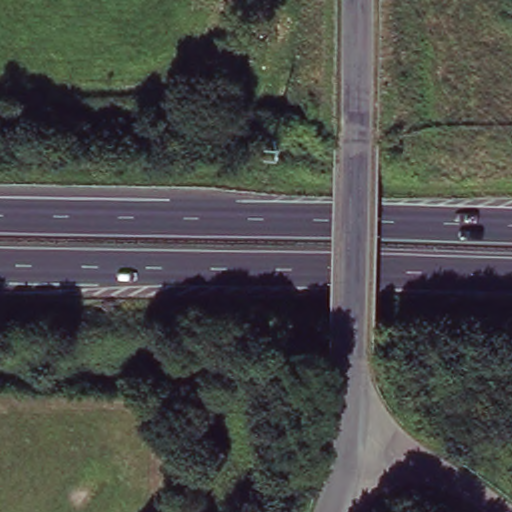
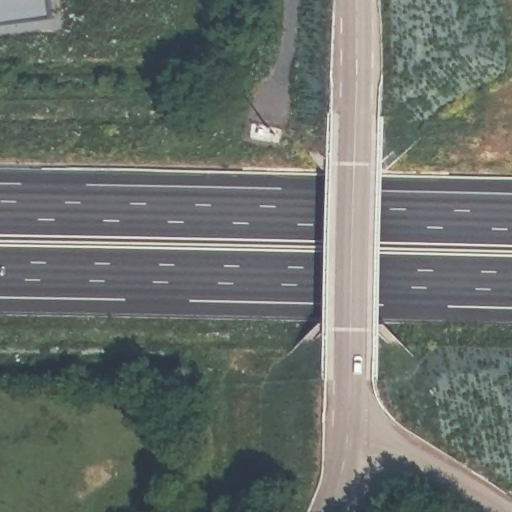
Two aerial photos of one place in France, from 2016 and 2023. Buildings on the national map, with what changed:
new [(49,16),(0,23),(0,0),(48,0),(49,16)]

